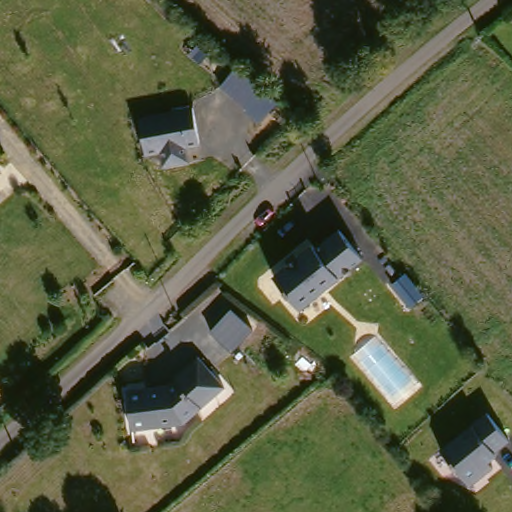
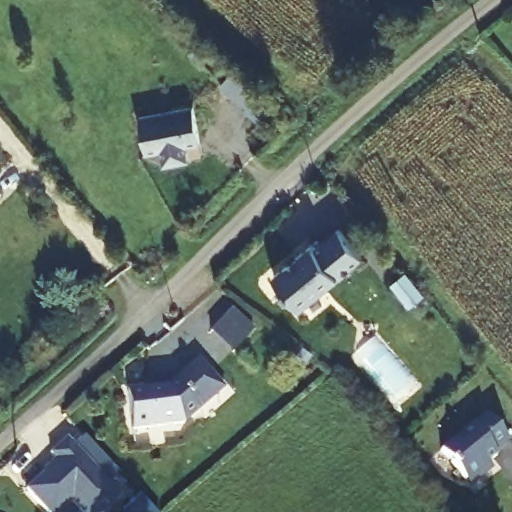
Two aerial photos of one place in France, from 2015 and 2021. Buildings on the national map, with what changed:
unchanged [(226,100),(244,79),(270,101),(253,122),(226,100)]
unchanged [(159,165),(156,150),(142,152),(135,116),(189,106),(196,142),(181,145),(184,160),(159,165)]
unchanged [(300,307),(274,276),(313,245),(316,248),(339,230),(362,257),(300,307)]
unchanged [(233,352),(210,332),(230,308),(255,330),(233,352)]
unchanged [(171,384),(202,356),(228,386),(187,421),(136,427),(131,389),(171,384)]
unchanged [(464,483),(439,453),(485,416),(507,443),(493,455),(495,457),(487,465),(491,470),(482,477),(469,489),(464,483)]
new [(72,502),(61,512),(48,512),(26,488),(45,472),(43,470),(58,458),(51,452),(68,437),(75,445),(122,496),(105,512),(82,512),(72,502)]

